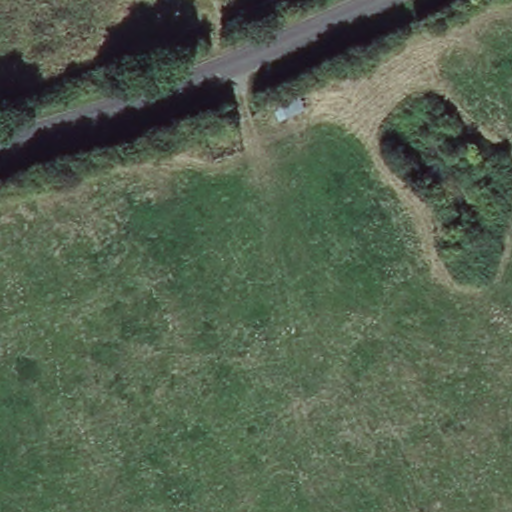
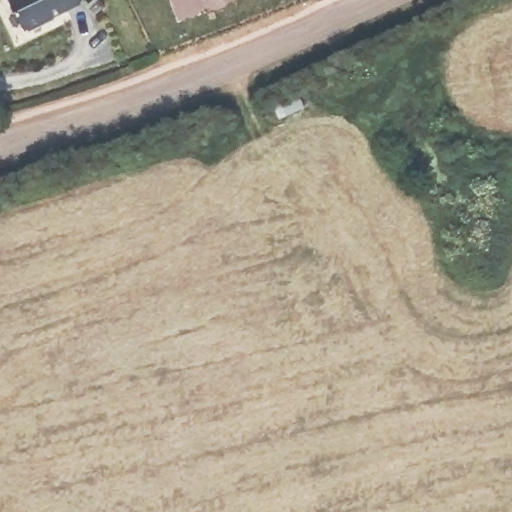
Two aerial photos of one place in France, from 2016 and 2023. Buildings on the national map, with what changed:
new [(12,0),(76,0),(79,6),(26,29),(12,0)]

